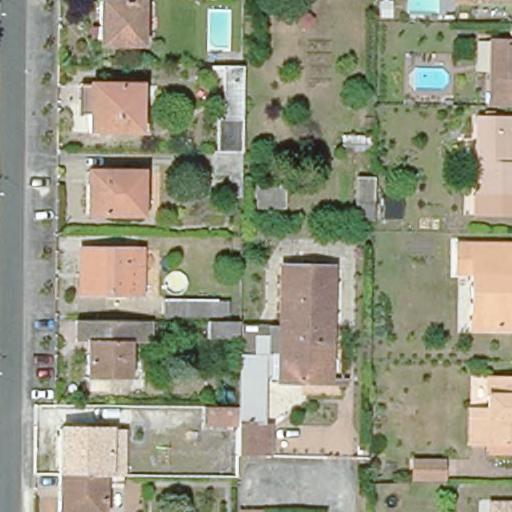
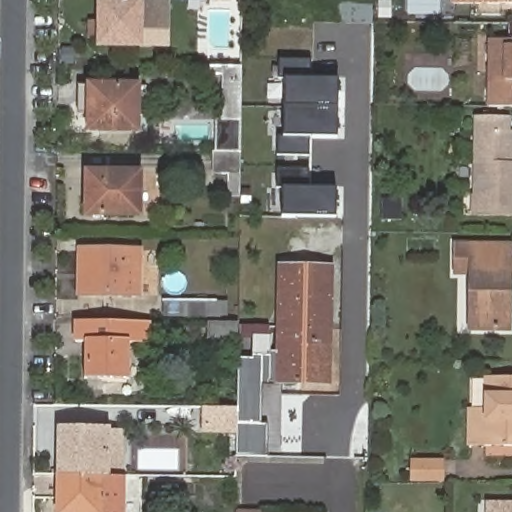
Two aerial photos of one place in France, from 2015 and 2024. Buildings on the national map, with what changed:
unchanged [(486,0),(512,0),(512,4),(486,4),(486,0)]
unchanged [(100,2),(139,4),(138,46),(99,45),(100,2)]
unchanged [(512,39),(512,106),(501,106),(485,106),(485,39),(512,39)]
new [(277,139),(283,139),(284,82),(278,82),(278,62),(311,62),(311,82),(338,82),(337,141),(309,141),(309,160),(277,159),(277,139)]
unchanged [(215,157),(216,124),(223,124),(223,80),(212,80),(212,71),(240,71),(239,157),(239,177),(214,177),(215,157)]
unchanged [(87,114),(78,114),(78,85),(137,86),(137,131),(95,130),(87,130),(87,114)]
unchanged [(471,194),(472,116),(504,117),(503,130),(509,130),(509,162),(512,162),(512,213),(470,213),(471,194)]
new [(335,189),(334,216),(277,215),(279,170),(308,170),(307,188),(335,189)]
unchanged [(139,216),(86,215),(86,184),(87,173),(103,174),(140,174),(139,216)]
demolished [(369,205),(354,204),(354,179),(369,179),(369,205)]
demolished [(282,210),(255,210),(255,187),(282,186),(282,210)]
unchanged [(502,335),(464,335),(465,278),(466,249),(500,250),(505,250),(504,279),(503,298),(503,315),(502,335)]
unchanged [(81,275),(81,251),(141,252),(140,296),(89,295),(80,295),(81,275)]
unchanged [(205,411),(237,411),(237,375),(237,360),(256,360),(257,340),(270,340),(271,328),(281,329),(283,269),(333,271),(331,385),(269,383),(269,377),(263,377),(262,426),(269,426),(269,459),(259,459),(236,458),(236,428),(204,428),(205,411)]
unchanged [(228,317),(161,316),(162,298),(229,299),(228,317)]
unchanged [(91,320),(150,320),(150,341),(127,341),(126,378),(86,378),(87,340),(75,340),(75,320),(91,320)]
unchanged [(237,338),(211,338),(211,321),(238,321),(237,338)]
unchanged [(469,416),(485,416),(486,385),(512,385),(512,454),(468,453),(469,416)]
unchanged [(101,478),(60,477),(60,433),(109,433),(108,478),(101,478)]
unchanged [(440,456),(440,478),(408,477),(406,457),(440,456)]
unchanged [(101,478),(100,512),(58,512),(58,477),(60,477),(101,478)]
unchanged [(490,502),(512,502),(512,512),(490,512),(490,502)]

